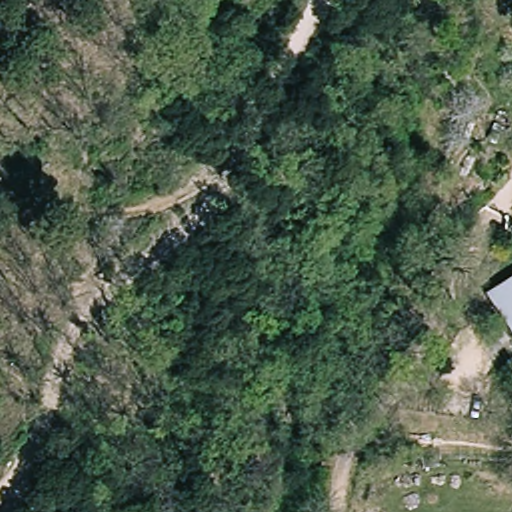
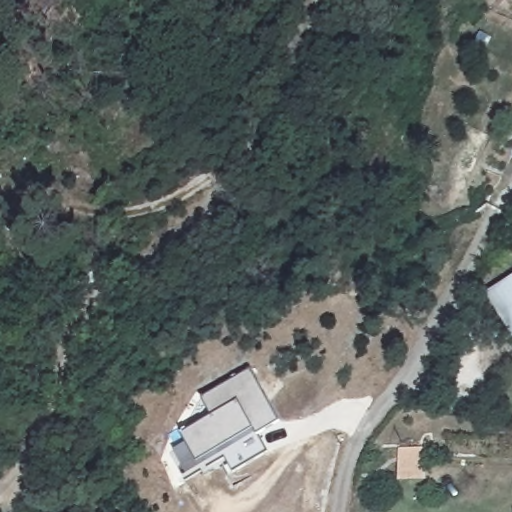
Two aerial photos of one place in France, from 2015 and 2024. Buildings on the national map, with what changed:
unchanged [(508,281),(512,279),(512,287),(508,281)]
unchanged [(512,287),(512,325),(492,291),(508,281),(512,287)]
new [(182,433),(212,414),(201,396),(252,365),(275,403),(285,421),(263,435),(273,451),(237,473),(222,448),(200,462),(188,469),(177,450),(188,443),(182,433)]

